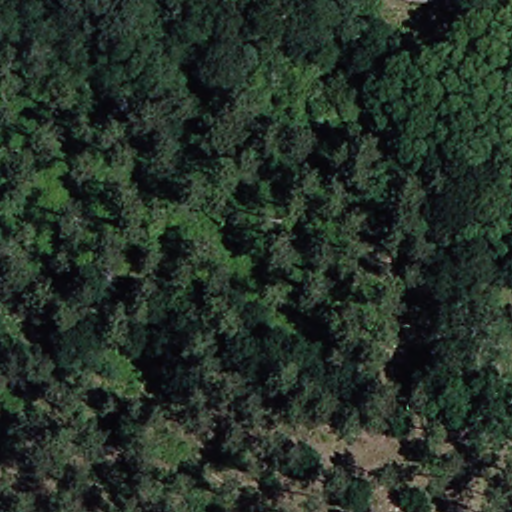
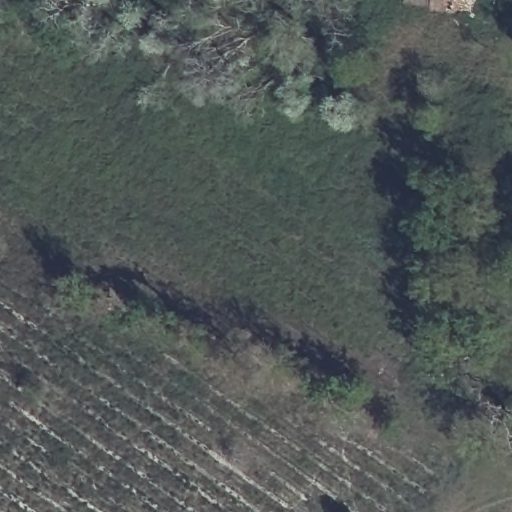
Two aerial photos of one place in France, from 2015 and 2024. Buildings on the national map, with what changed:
unchanged [(470,0),(467,16),(408,4),(405,0),(470,0)]

